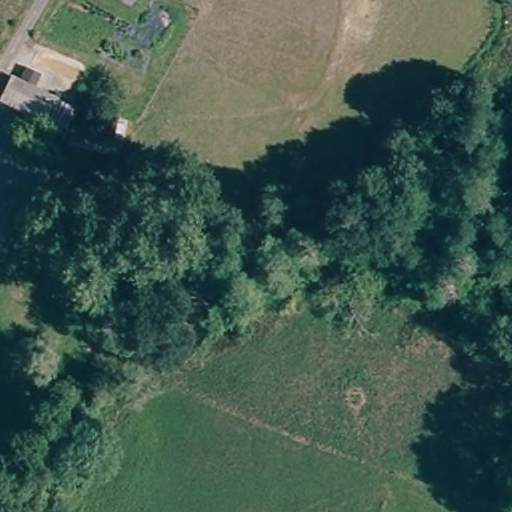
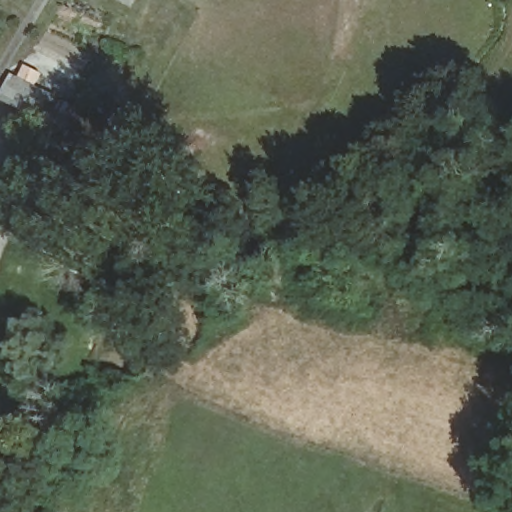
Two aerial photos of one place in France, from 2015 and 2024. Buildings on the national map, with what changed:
unchanged [(12,76),(20,80),(27,66),(63,86),(59,98),(77,111),(65,135),(0,103),(0,100),(12,76)]

